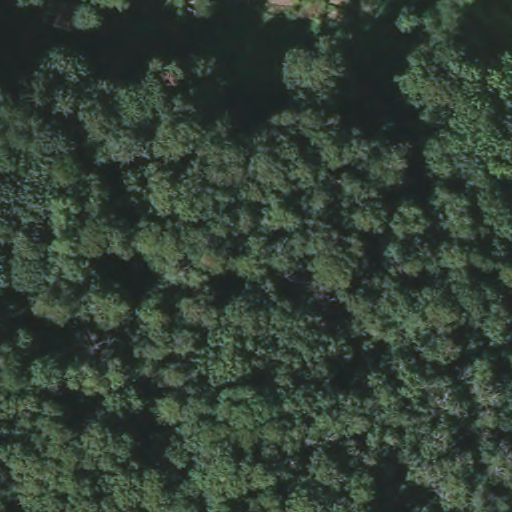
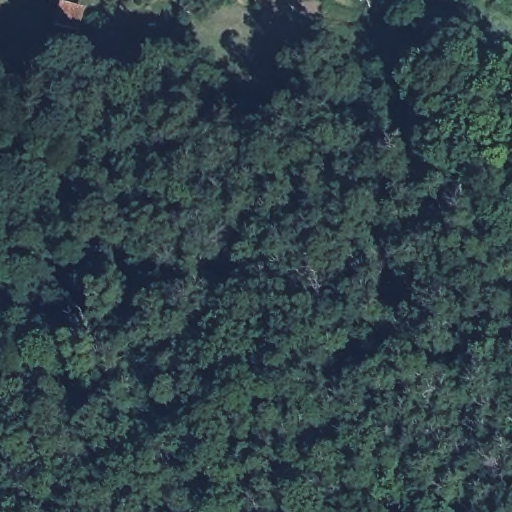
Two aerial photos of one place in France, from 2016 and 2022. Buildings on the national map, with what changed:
unchanged [(73,0),(86,3),(82,29),(50,24),(54,0),(73,0)]

